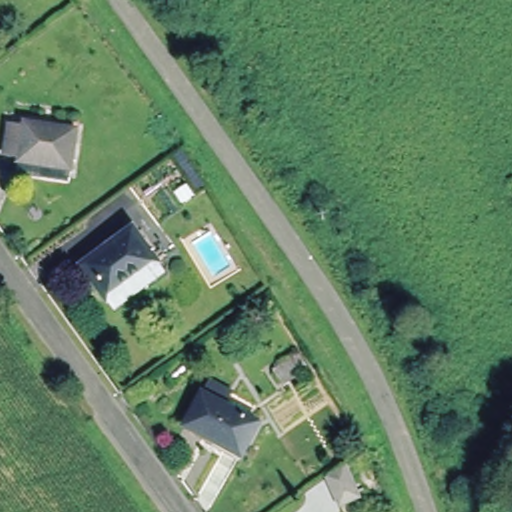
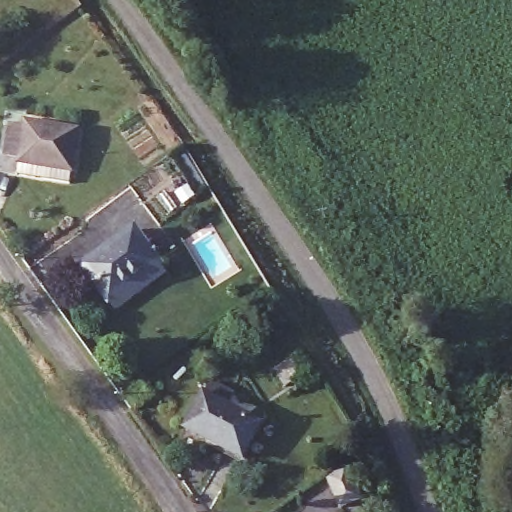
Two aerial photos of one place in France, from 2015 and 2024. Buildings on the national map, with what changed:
unchanged [(14,165),(17,152),(17,148),(0,145),(0,142),(4,122),(20,125),(21,116),(74,128),(70,163),(68,176),(14,165)]
unchanged [(134,229),(166,275),(113,305),(79,259),(134,229)]
unchanged [(241,462),(182,424),(204,396),(210,383),(232,394),(224,407),(261,429),(241,462)]
unchanged [(121,410),(146,398),(154,410),(129,423),(121,410)]
unchanged [(341,462),(360,488),(344,501),(323,475),(341,462)]

